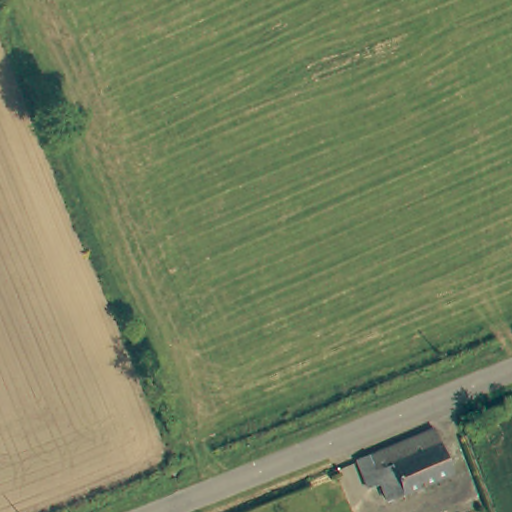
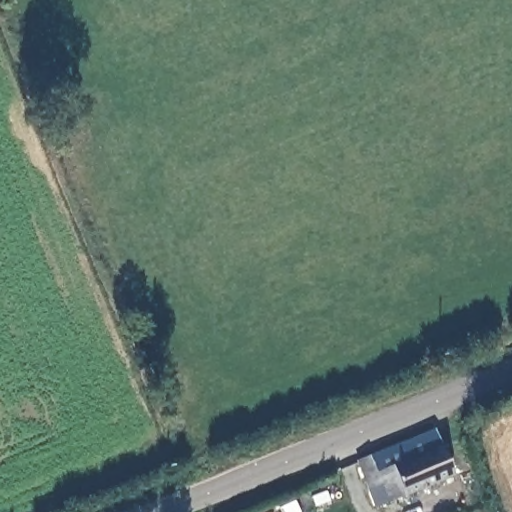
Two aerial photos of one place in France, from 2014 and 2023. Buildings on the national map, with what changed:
unchanged [(434,427),(453,473),(389,500),(381,482),(368,487),(357,460),(434,427)]

